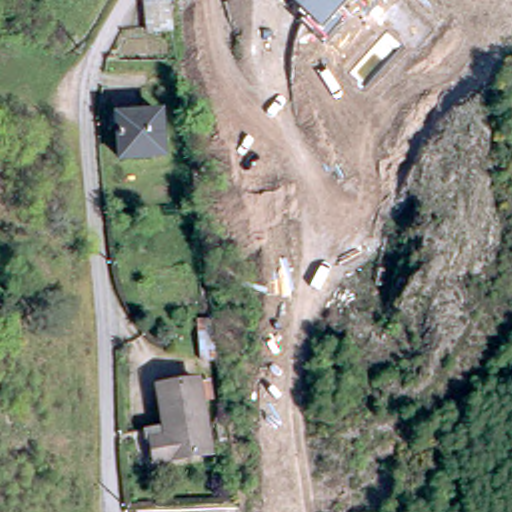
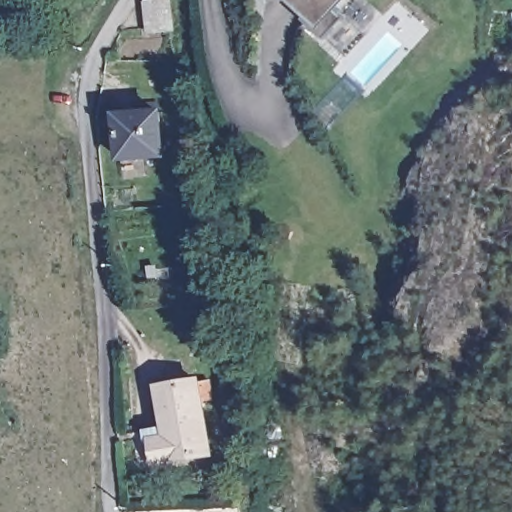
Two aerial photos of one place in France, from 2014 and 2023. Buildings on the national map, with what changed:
unchanged [(285,0),(350,0),(321,32),(285,0)]
unchanged [(167,24),(146,27),(143,2),(163,1),(167,24)]
unchanged [(136,113),(158,112),(161,155),(118,157),(114,122),(136,122),(136,113)]
unchanged [(213,448),(146,462),(141,431),(169,426),(161,381),(198,373),(213,448)]

